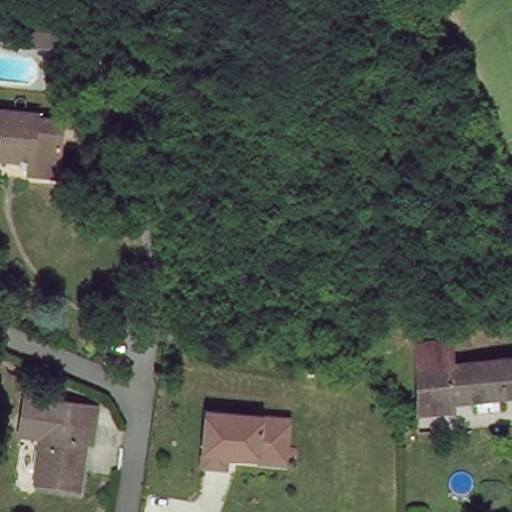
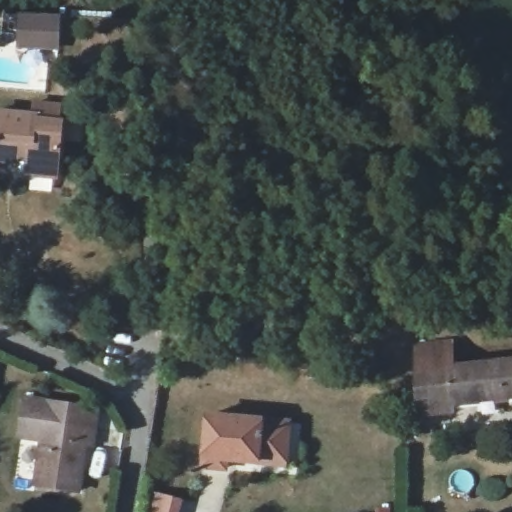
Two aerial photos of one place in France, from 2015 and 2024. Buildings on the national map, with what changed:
new [(60,14),(58,50),(15,49),(15,14),(60,14)]
unchanged [(42,102),(41,108),(65,109),(61,195),(33,192),(33,178),(0,176),(0,100),(42,102)]
unchanged [(430,437),(418,437),(415,346),(450,343),(451,367),(512,360),(512,396),(430,408),(430,437)]
unchanged [(31,402),(100,411),(96,443),(86,442),(80,490),(38,483),(44,441),(26,438),(31,402)]
unchanged [(263,417),(293,420),(288,468),(231,464),(230,473),(197,470),(206,412),(263,417)]

